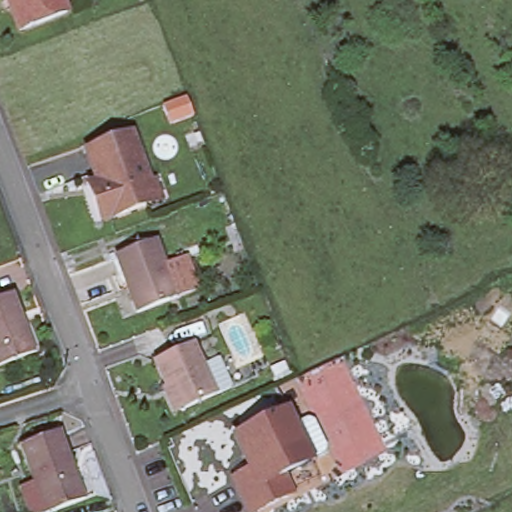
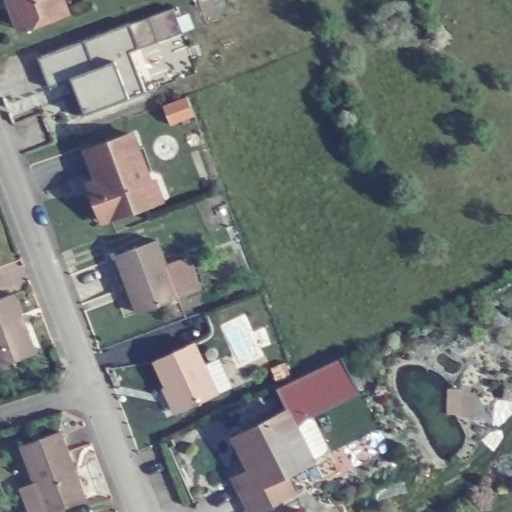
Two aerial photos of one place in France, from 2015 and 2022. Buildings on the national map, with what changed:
unchanged [(8,0),(61,0),(65,12),(23,28),(18,30),(8,0)]
new [(78,114),(66,80),(50,85),(40,57),(131,26),(139,47),(131,50),(145,90),(128,97),(85,113),(78,114)]
new [(185,96),(192,115),(169,123),(162,105),(185,96)]
unchanged [(160,199),(145,205),(102,221),(93,198),(88,185),(97,182),(85,151),(131,134),(150,183),(153,181),(160,199)]
unchanged [(196,289),(176,297),(136,312),(115,257),(155,242),(164,266),(184,258),(196,289)]
unchanged [(11,292),(33,350),(0,363),(0,296),(11,292)]
unchanged [(148,362),(187,344),(196,364),(212,357),(225,386),(210,393),(171,411),(148,362)]
unchanged [(251,511),(235,477),(251,468),(235,436),(287,410),(312,459),(283,474),(292,491),(251,511)]
unchanged [(59,435),(70,465),(85,504),(60,512),(27,512),(20,492),(35,488),(20,449),(59,435)]

